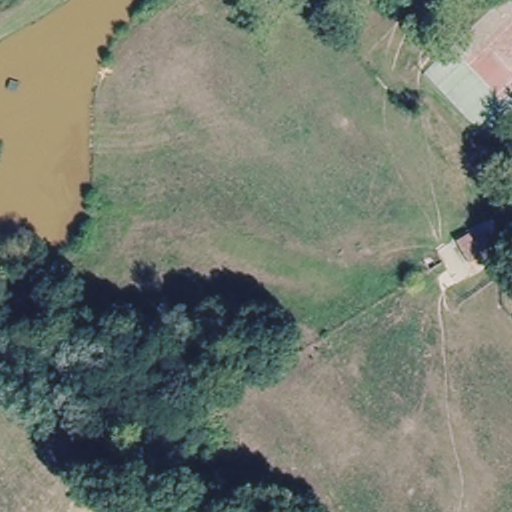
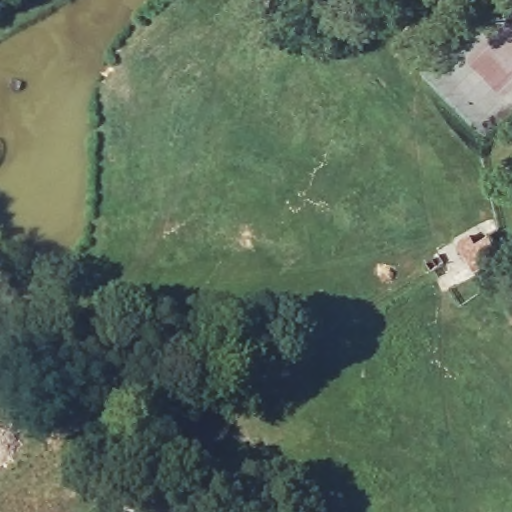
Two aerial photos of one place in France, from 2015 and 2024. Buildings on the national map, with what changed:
unchanged [(472,264),(463,250),(488,235),(497,249),(472,264)]

